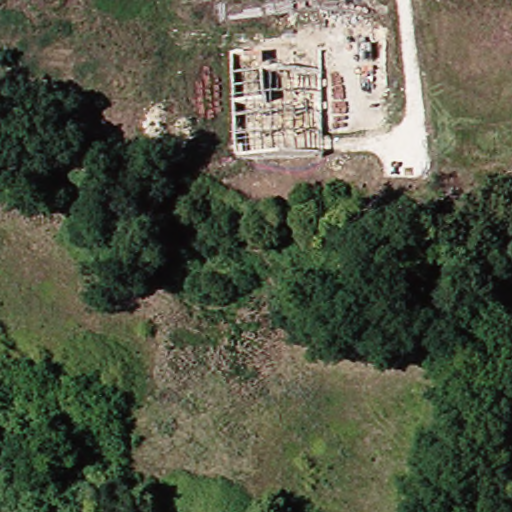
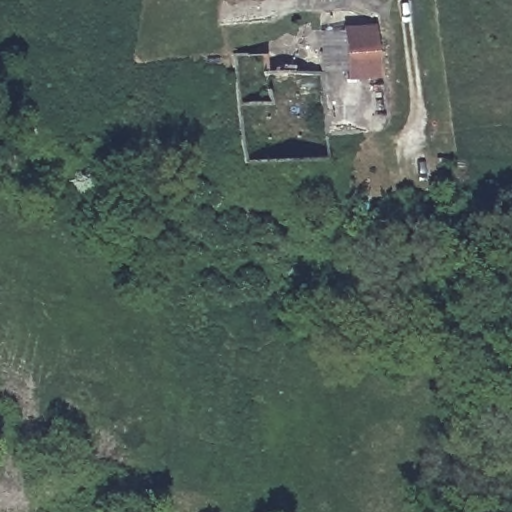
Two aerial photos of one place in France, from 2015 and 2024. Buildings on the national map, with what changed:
new [(378,80),(345,81),(342,29),(374,28),(378,80)]
unchanged [(225,53),(260,51),(260,74),(260,103),(227,104),(225,53)]
unchanged [(318,72),(325,161),(230,165),(227,104),(260,103),(260,74),(318,72)]

